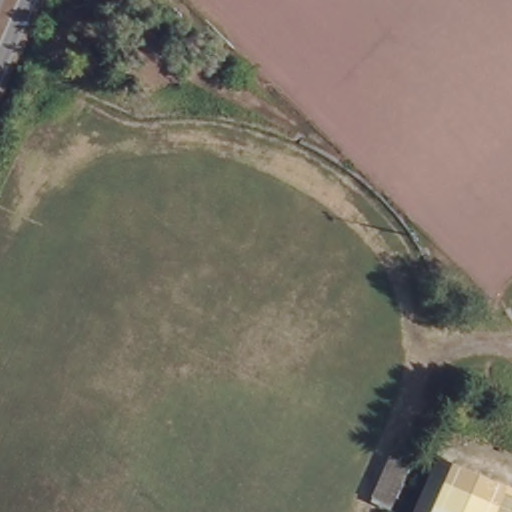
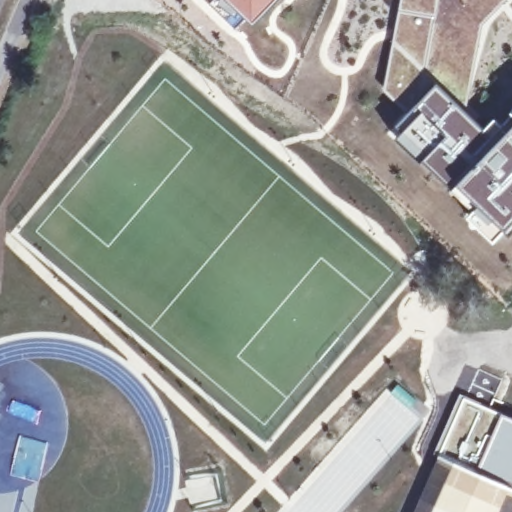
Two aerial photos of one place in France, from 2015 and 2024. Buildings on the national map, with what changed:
new [(226,0),(275,0),(252,25),(226,0)]
new [(399,0),(507,0),(484,26),(468,95),(463,105),(438,80),(405,112),(381,89),(388,60),(399,0)]
new [(405,112),(438,80),(463,105),(483,126),(495,115),(498,118),(507,126),(449,190),(388,130),(405,112)]
new [(498,118),(506,110),(512,105),(512,232),(508,236),(503,230),(492,240),(464,214),(469,209),(449,190),(507,126),(498,118)]
unchanged [(396,456),(419,465),(397,510),(374,497),(396,456)]
unchanged [(512,512),(417,512),(441,456),(512,487),(512,512)]

